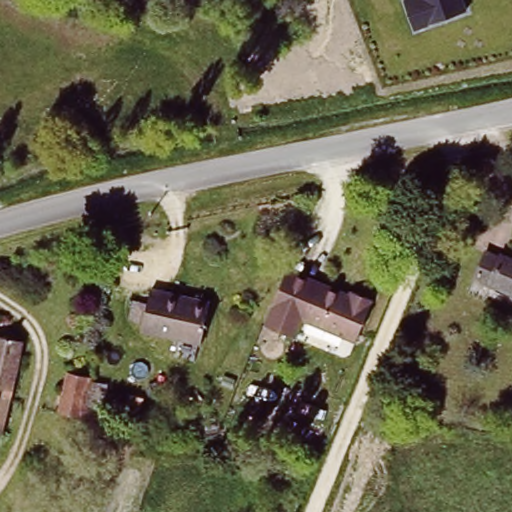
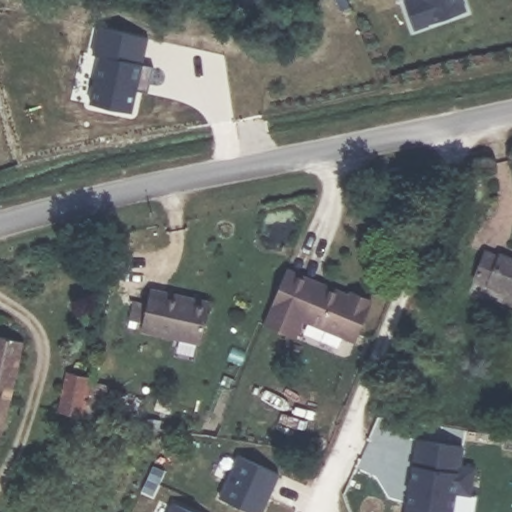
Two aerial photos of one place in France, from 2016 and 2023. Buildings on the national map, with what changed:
unchanged [(402,0),(461,0),(464,11),(412,31),(402,0)]
new [(143,61),(154,64),(151,84),(138,81),(131,111),(90,102),(101,56),(94,54),(99,27),(148,35),(143,61)]
unchanged [(491,257),(493,252),(512,260),(512,293),(467,274),(476,252),(491,257)]
unchanged [(378,298),(360,341),(299,315),(289,338),(261,327),(284,272),(314,285),(317,277),(354,292),(355,289),(378,298)]
unchanged [(143,288),(205,301),(196,342),(136,330),(143,288)]
unchanged [(19,346),(0,430),(0,342),(19,346)]
unchanged [(85,414),(83,413),(63,410),(70,367),(93,372),(85,414)]
new [(416,438),(463,446),(462,464),(476,466),(472,496),(457,495),(455,512),(405,512),(412,464),(416,438)]
new [(249,512),(219,497),(239,452),(281,472),(263,512),(249,512)]
new [(196,512),(169,512),(173,502),(196,512)]

